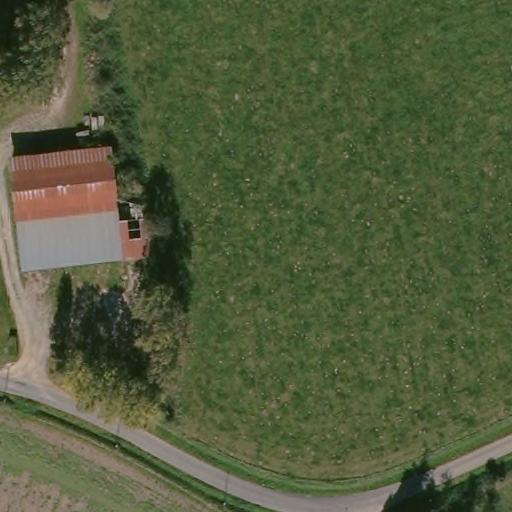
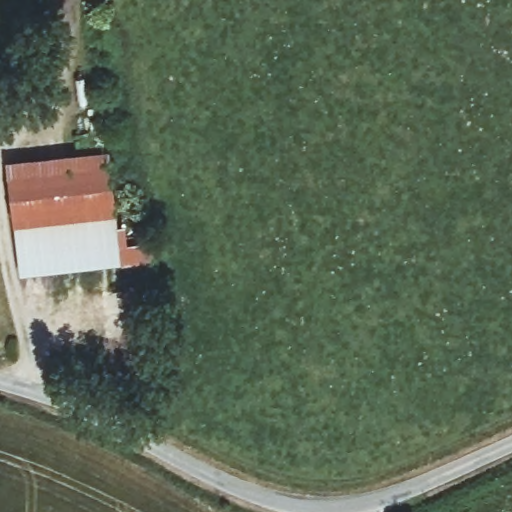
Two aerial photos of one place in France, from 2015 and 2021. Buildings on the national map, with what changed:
unchanged [(21,70),(0,78),(0,62),(15,56),(21,70)]
unchanged [(120,204),(150,202),(154,221),(157,258),(25,271),(15,172),(115,162),(120,204)]

